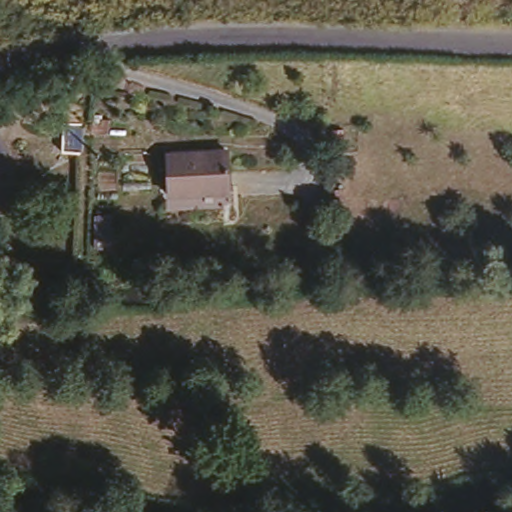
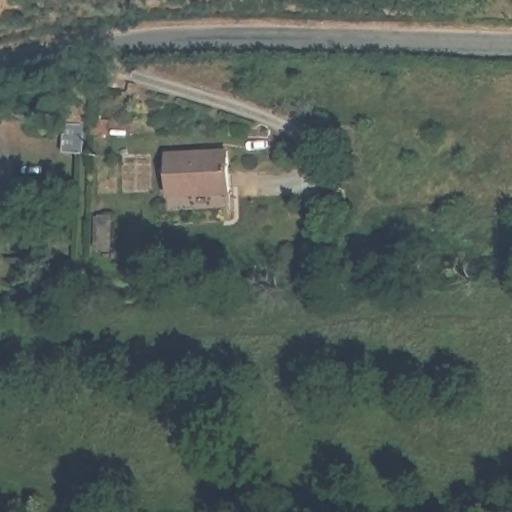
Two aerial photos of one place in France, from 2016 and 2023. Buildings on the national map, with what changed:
unchanged [(234,146),(229,216),(164,219),(162,150),(234,146)]

